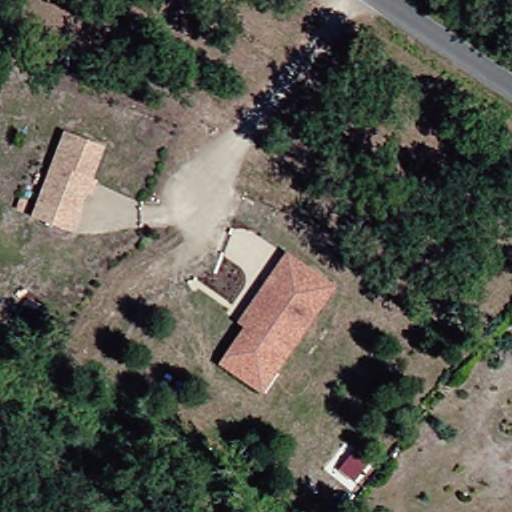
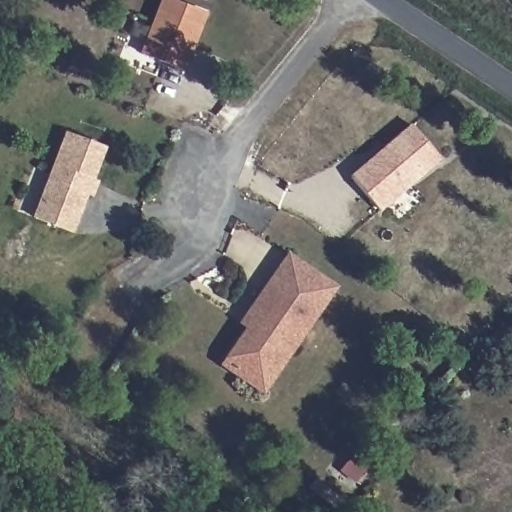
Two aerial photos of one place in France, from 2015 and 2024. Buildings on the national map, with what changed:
new [(184,72),(139,54),(159,0),(170,0),(206,14),(184,72)]
new [(410,125),(441,161),(380,212),(349,177),(410,125)]
unchanged [(70,234),(34,218),(66,132),(105,145),(70,234)]
unchanged [(244,329),(237,323),(287,254),(335,291),(263,396),(219,365),(244,329)]

